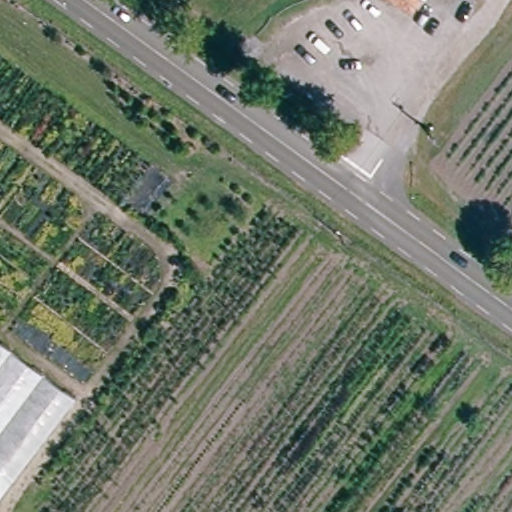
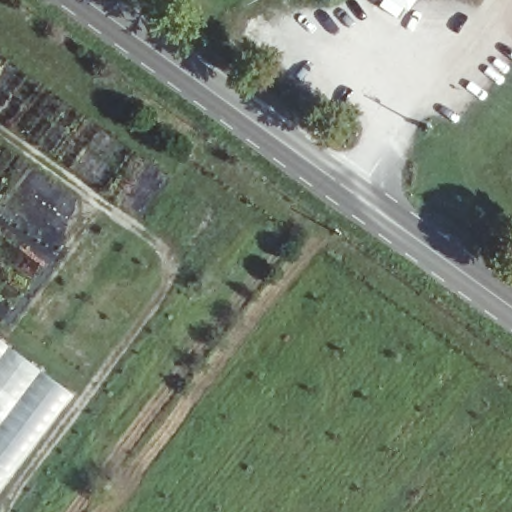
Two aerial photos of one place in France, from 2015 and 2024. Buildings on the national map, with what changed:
unchanged [(393,0),(431,0),(417,18),(393,0)]
unchanged [(74,395),(0,493),(0,342),(74,395)]

